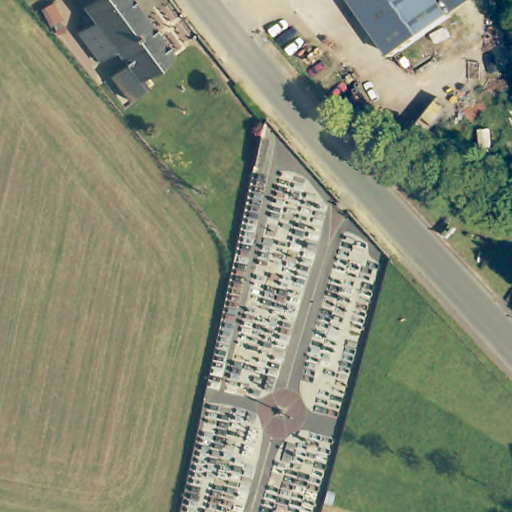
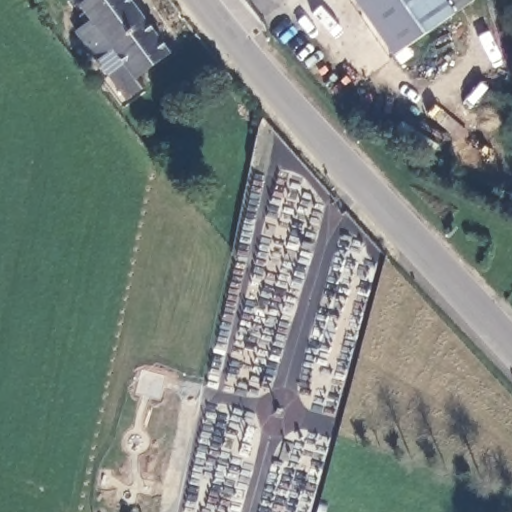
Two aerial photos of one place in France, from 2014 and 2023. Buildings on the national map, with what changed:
unchanged [(137,78),(144,88),(126,102),(107,76),(124,64),(113,49),(95,60),(74,33),(90,21),(84,14),(82,16),(75,7),(78,5),(74,0),(128,0),(169,54),(137,78)]
unchanged [(398,53),(359,0),(472,0),(398,53)]

